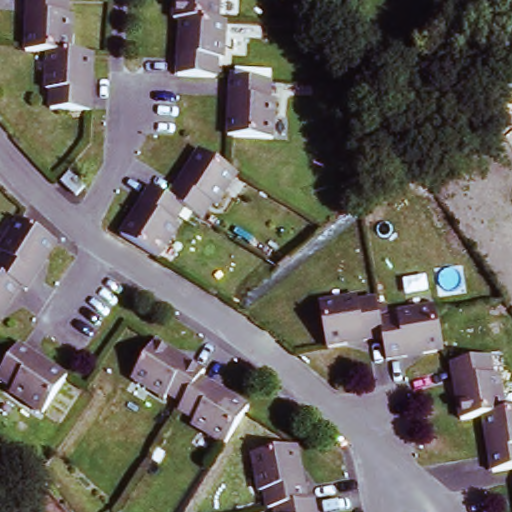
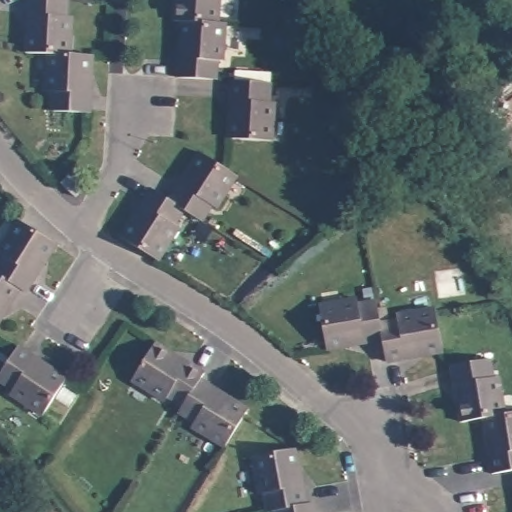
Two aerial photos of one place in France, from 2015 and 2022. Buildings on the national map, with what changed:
unchanged [(20,49),(21,30),(25,30),(26,12),(23,12),(23,0),(63,0),(62,15),(67,15),(64,51),(43,50),(20,49)]
unchanged [(181,19),(174,18),(174,0),(221,0),(219,20),(181,19)]
unchanged [(179,37),(181,19),(219,20),(225,21),(223,59),(217,58),(216,77),(177,75),(178,56),(184,56),(186,38),(179,37)]
unchanged [(80,72),(79,89),(85,90),(84,110),(46,107),(48,88),(40,87),(43,50),(64,51),(88,53),(86,72),(80,72)]
unchanged [(231,79),(272,81),(271,100),(276,100),(274,139),(228,136),(229,115),(235,115),(236,97),(231,97),(231,79)]
unchanged [(189,169),(184,166),(194,150),(231,173),(211,205),(207,201),(197,218),(180,207),(165,198),(175,181),(180,185),(189,169)]
unchanged [(83,191),(76,200),(61,185),(70,177),(83,191)]
unchanged [(169,225),(173,227),(154,258),(116,235),(127,217),(132,220),(141,206),(136,204),(146,186),(165,198),(180,207),(169,225)]
unchanged [(37,273),(26,290),(20,285),(0,273),(0,255),(3,250),(0,249),(0,245),(18,217),(56,242),(46,257),(43,255),(33,270),(37,273)]
unchanged [(5,299),(0,307),(0,273),(20,285),(10,302),(5,299)]
unchanged [(363,340),(362,336),(346,339),(347,343),(327,346),(319,302),(356,296),(357,301),(377,298),(381,320),(384,337),(363,340)]
unchanged [(398,312),(435,305),(443,349),(423,352),(422,349),(404,351),(406,355),(387,358),(384,337),(381,320),(399,316),(398,312)]
unchanged [(166,392),(162,396),(132,378),(156,340),(173,350),(171,355),(185,363),(187,360),(203,370),(199,375),(183,402),(166,392)]
unchanged [(47,367),(50,363),(67,375),(42,412),(8,391),(12,386),(0,379),(0,371),(18,343),(33,353),(31,357),(47,367)]
unchanged [(455,418),(452,398),(456,398),(454,381),(449,382),(447,363),(486,357),(489,376),(494,375),(500,411),(479,415),(455,418)]
unchanged [(232,395),(248,405),(223,445),(192,425),(194,420),(179,410),(183,402),(199,375),(216,385),(213,391),(228,400),(232,395)]
unchanged [(488,470),(485,452),(489,450),(487,432),(482,433),(479,415),(500,411),(512,409),(512,466),(488,470)]
unchanged [(268,512),(264,494),(259,495),(252,459),(295,451),(299,471),(294,472),(298,488),(303,488),(305,505),(274,510),(268,512)]
unchanged [(274,512),(274,510),(305,505),(313,504),(314,512),(274,512)]

